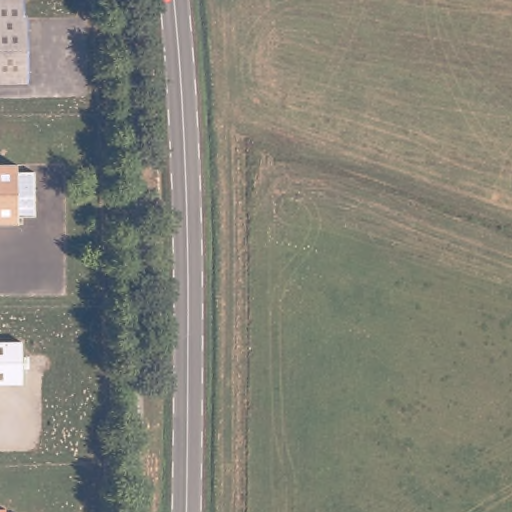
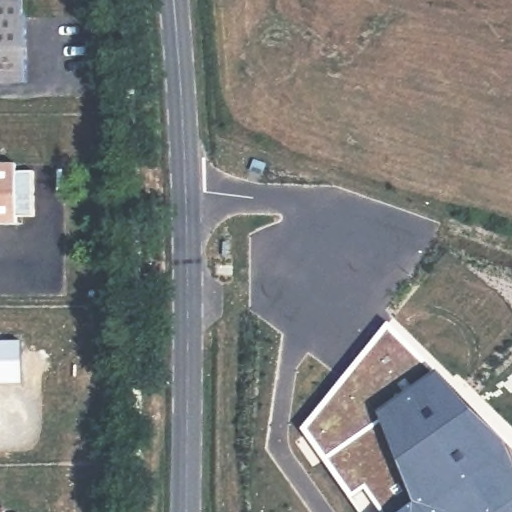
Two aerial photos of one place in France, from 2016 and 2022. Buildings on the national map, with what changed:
unchanged [(0,0),(25,0),(25,15),(29,15),(31,81),(0,82),(0,0)]
unchanged [(20,170),(37,169),(38,214),(20,215),(20,222),(0,222),(0,162),(19,162),(20,170)]
new [(512,442),(512,512),(364,512),(302,429),(389,320),(512,442)]
unchanged [(0,338),(23,338),(23,351),(31,351),(31,368),(23,369),(23,382),(0,382),(0,338)]
unchanged [(6,512),(0,512),(0,505),(6,505),(6,512)]

